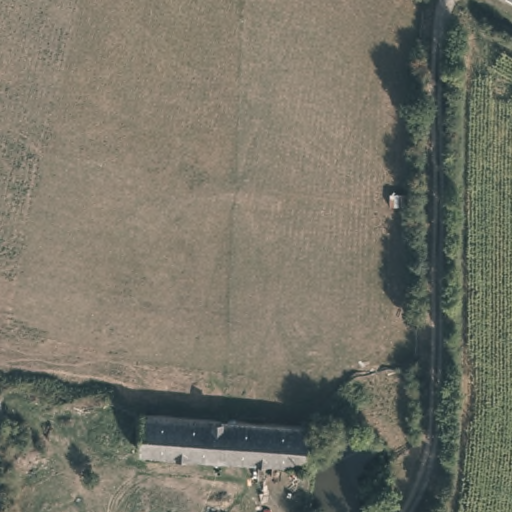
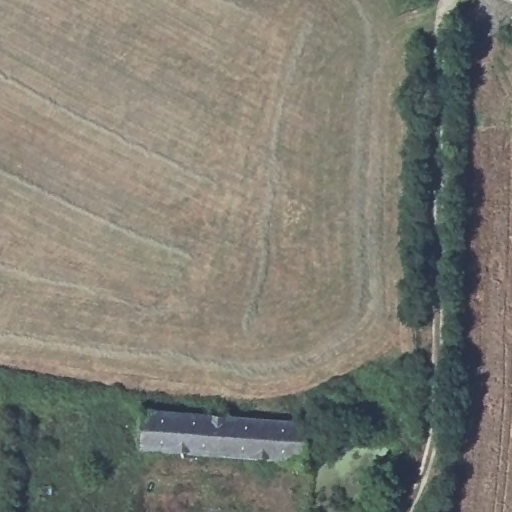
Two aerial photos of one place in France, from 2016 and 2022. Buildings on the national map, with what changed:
unchanged [(306,455),(142,447),(142,407),(222,412),(286,416),(305,417),(306,455)]

